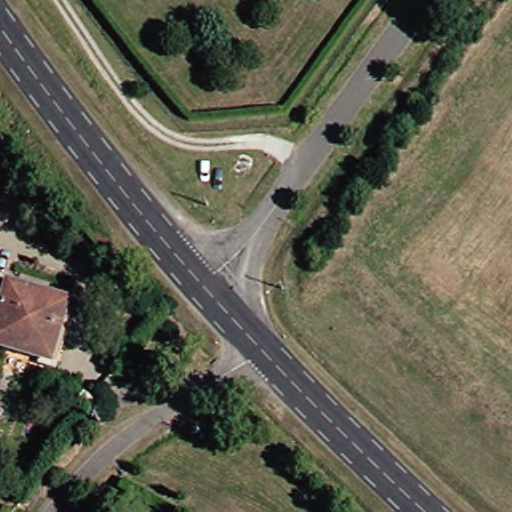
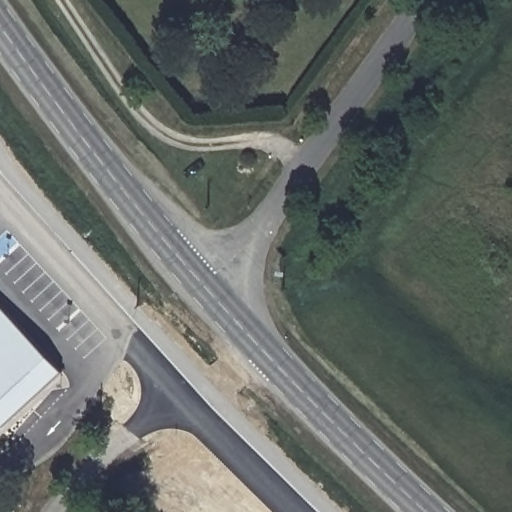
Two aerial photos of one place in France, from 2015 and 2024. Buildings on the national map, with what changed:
demolished [(10,285),(71,303),(54,364),(0,348),(0,321),(10,285)]
new [(61,371),(0,427),(0,304),(61,371)]

